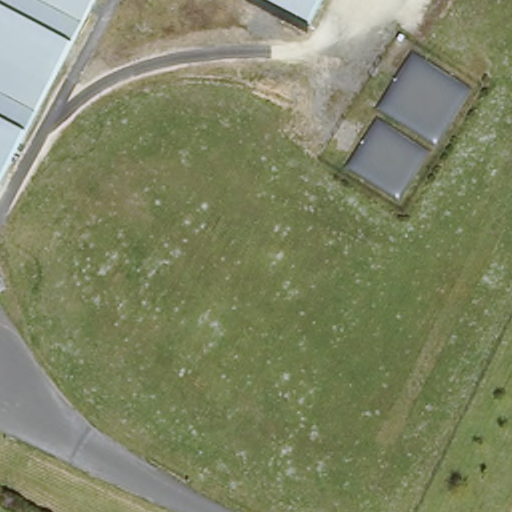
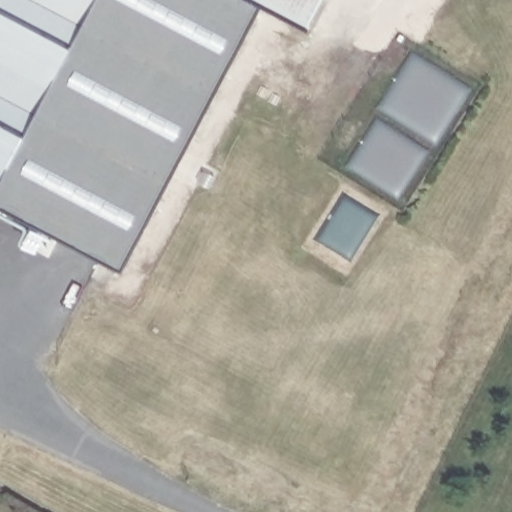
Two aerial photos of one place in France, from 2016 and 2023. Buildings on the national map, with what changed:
unchanged [(0,184),(0,0),(95,0),(0,184)]
new [(95,0),(248,0),(262,8),(121,274),(0,209),(0,184),(95,0)]
unchanged [(305,31),(248,0),(321,0),(305,31)]

